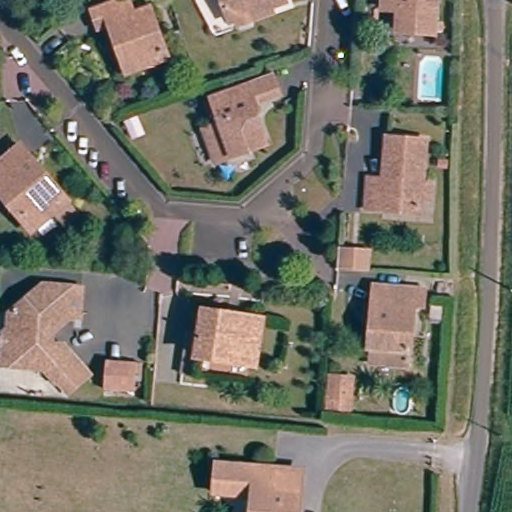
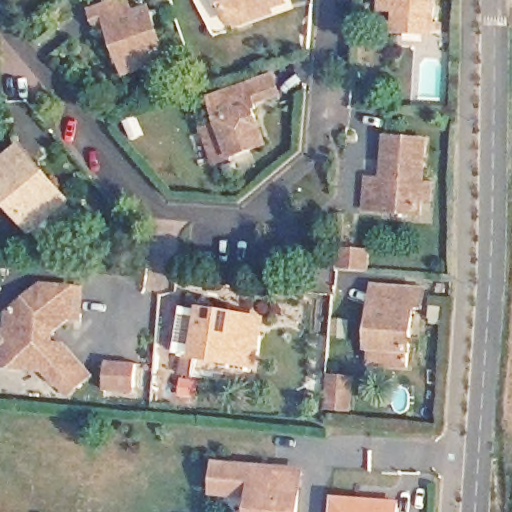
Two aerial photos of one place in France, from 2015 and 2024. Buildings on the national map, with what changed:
unchanged [(101,25),(94,27),(87,10),(114,0),(123,0),(128,14),(143,7),(160,54),(126,67),(118,70),(107,41),(101,25)]
unchanged [(218,25),(209,0),(272,0),(273,5),(218,25)]
unchanged [(393,31),(394,10),(378,9),(378,0),(433,0),(431,34),(393,31)]
unchanged [(264,137),(271,153),(239,165),(234,149),(208,159),(187,106),(213,96),(275,71),(282,90),(257,100),(259,105),(253,108),(264,137)]
unchanged [(381,214),(364,212),(367,180),(386,181),(390,137),(425,140),(422,182),(432,184),(431,200),(420,199),(419,207),(419,217),(381,214)]
unchanged [(0,199),(0,178),(2,176),(0,174),(0,156),(19,140),(63,195),(61,196),(72,210),(58,220),(47,207),(23,227),(0,199)]
unchanged [(370,263),(363,262),(341,260),(342,244),(365,245),(372,246),(370,263)]
unchanged [(371,358),(372,341),(376,284),(417,287),(429,287),(428,302),(416,301),(413,345),(412,362),(371,358)]
unchanged [(40,370),(27,370),(1,368),(1,358),(2,335),(8,328),(8,312),(40,285),(83,287),(81,319),(71,318),(51,336),(45,335),(44,346),(63,347),(78,366),(58,383),(54,386),(40,370)]
unchanged [(236,361),(200,356),(197,374),(185,372),(188,351),(191,331),(203,333),(206,310),(263,317),(260,346),(257,363),(236,361)]
unchanged [(129,385),(99,382),(101,360),(102,353),(117,355),(132,356),(129,385)]
unchanged [(346,375),(344,405),(321,402),(324,372),(346,375)]
unchanged [(243,491),(223,490),(206,488),(209,459),(226,460),(291,466),(287,510),(287,512),(242,512),(243,491)]
new [(402,501),(402,512),(333,512),(334,496),(402,501)]

